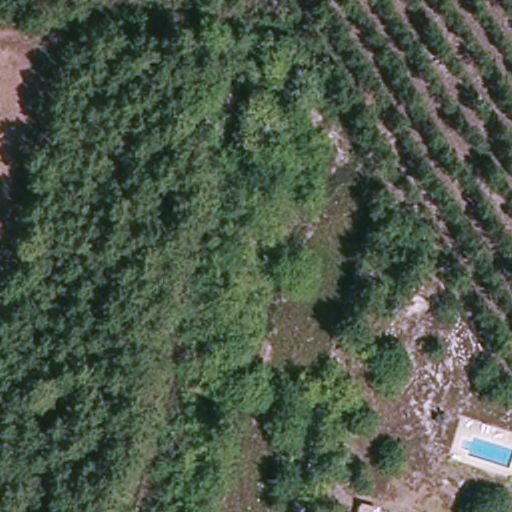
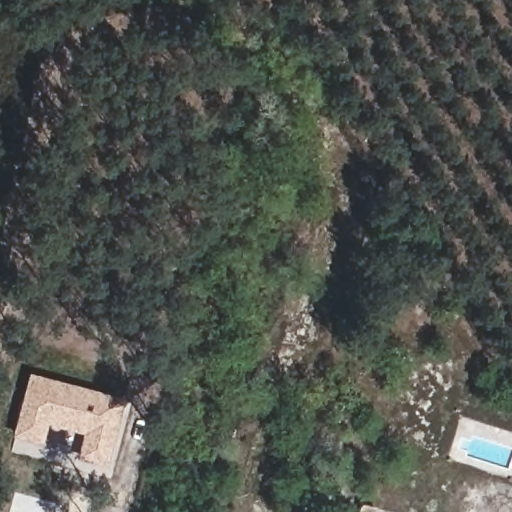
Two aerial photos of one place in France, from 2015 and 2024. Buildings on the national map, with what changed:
new [(125,399),(107,467),(77,459),(84,431),(47,422),(44,440),(13,432),(29,373),(125,399)]

